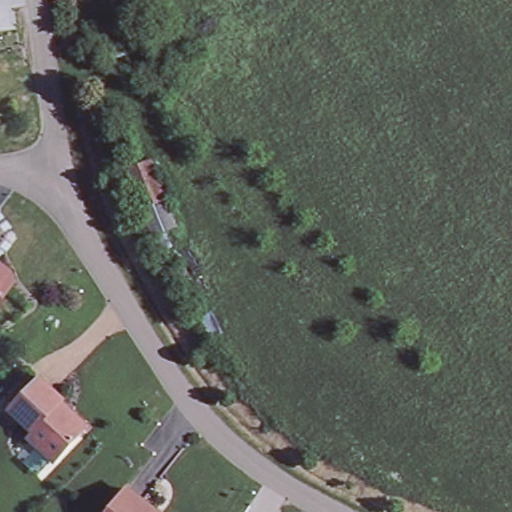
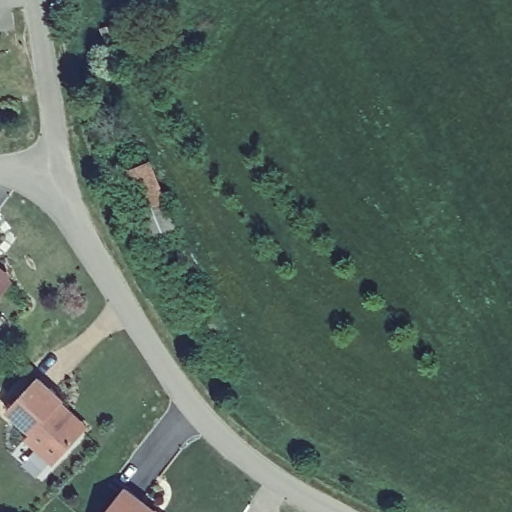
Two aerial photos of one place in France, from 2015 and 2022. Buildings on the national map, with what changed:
unchanged [(134,18),(138,33),(107,42),(103,27),(134,18)]
unchanged [(152,161),(176,225),(153,234),(130,169),(152,161)]
unchanged [(8,281),(0,291),(0,267),(3,270),(8,281)]
unchanged [(26,438),(32,432),(7,411),(37,377),(62,401),(61,403),(87,427),(83,431),(53,463),(26,438)]
unchanged [(125,490),(152,510),(155,512),(109,512),(125,490)]

